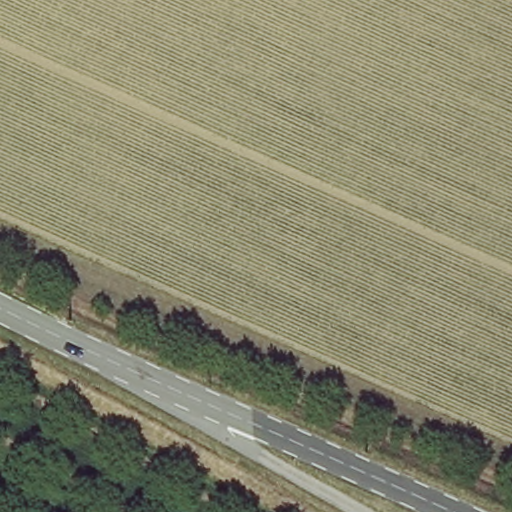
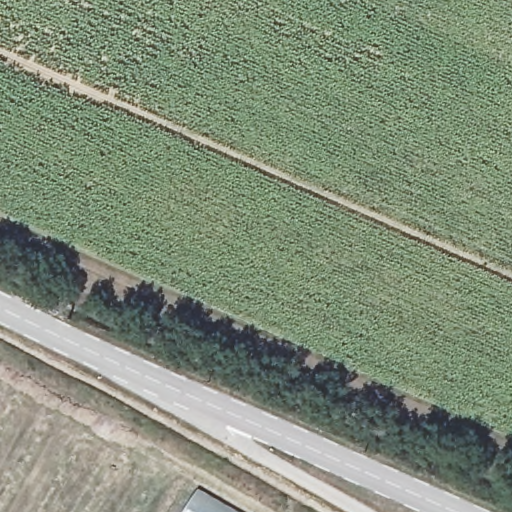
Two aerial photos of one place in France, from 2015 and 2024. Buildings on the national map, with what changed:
new [(200,491),(236,512),(187,512),(200,491)]

